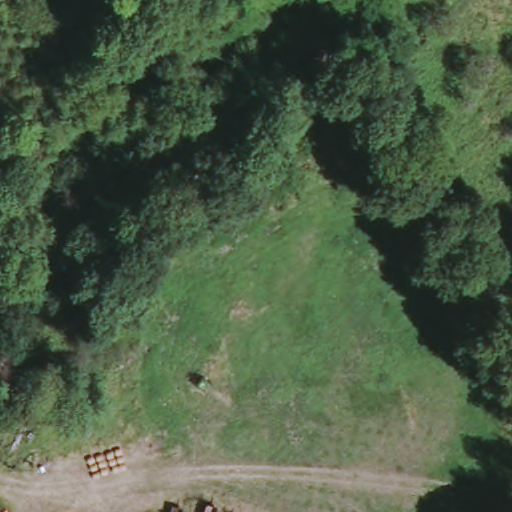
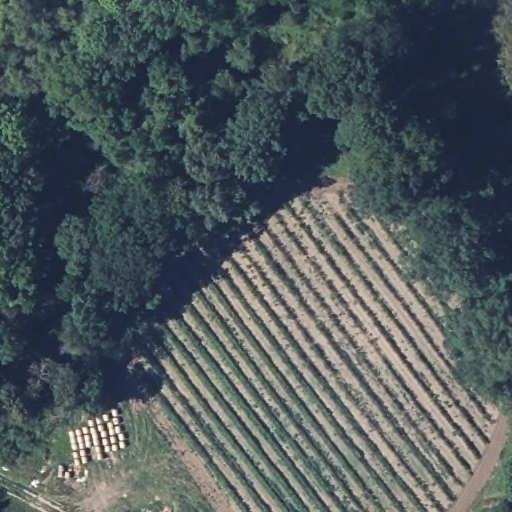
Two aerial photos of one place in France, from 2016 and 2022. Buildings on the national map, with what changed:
[]

